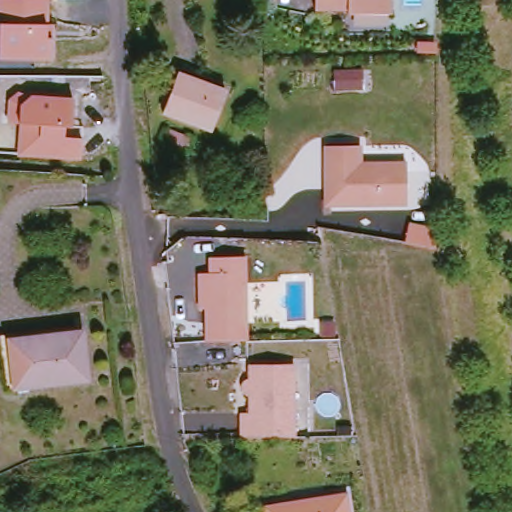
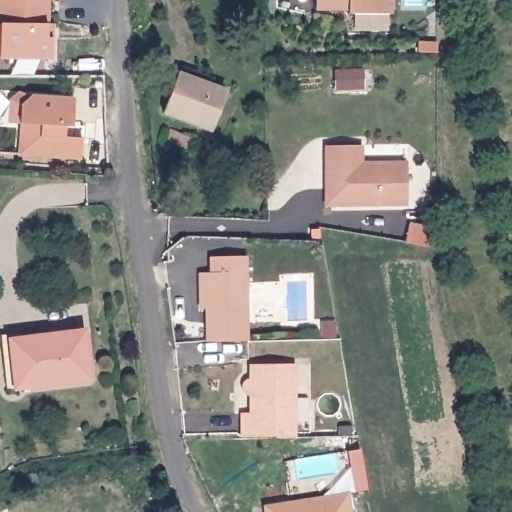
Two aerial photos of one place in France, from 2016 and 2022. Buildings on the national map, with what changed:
unchanged [(50,56),(0,57),(0,0),(48,0),(50,23),(50,56)]
unchanged [(348,14),(348,9),(316,9),(316,0),(392,0),(392,13),(348,14)]
unchanged [(216,133),(171,116),(185,78),(230,95),(216,133)]
unchanged [(70,97),(68,130),(68,136),(78,136),(78,157),(17,153),(17,125),(8,122),(9,97),(21,89),(70,97)]
unchanged [(171,130),(194,138),(190,150),(166,141),(171,130)]
unchanged [(331,210),(331,150),(331,148),(366,147),(366,150),(367,168),(412,167),(412,175),(413,209),(331,210)]
unchanged [(410,225),(437,230),(437,250),(406,244),(410,225)]
unchanged [(215,262),(250,261),(252,346),(212,347),(212,313),(210,313),(205,313),(205,278),(210,278),(215,278),(215,262)]
unchanged [(45,338),(45,335),(82,330),(88,378),(15,388),(10,342),(45,338)]
unchanged [(293,364),(295,436),(241,437),(240,415),(250,415),(250,395),(248,395),(247,395),(246,395),(245,394),(243,393),(242,392),(242,390),(241,389),(241,388),(241,386),(241,385),(242,384),(243,383),(244,382),(245,381),(246,380),(248,380),(250,380),(250,365),(293,364)]
unchanged [(346,499),(349,512),(269,512),(346,499)]

